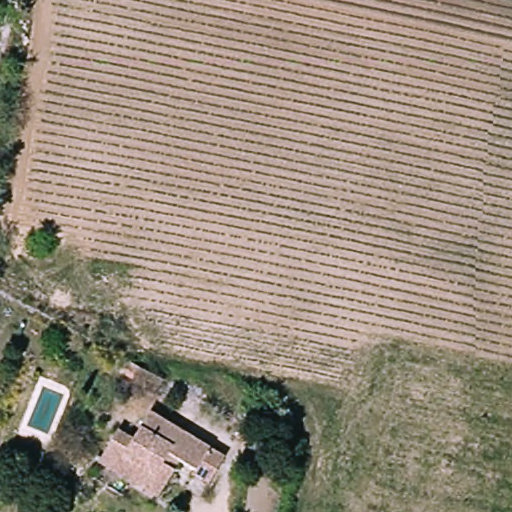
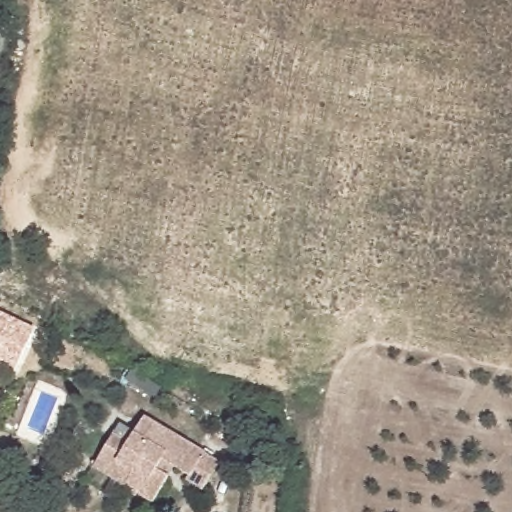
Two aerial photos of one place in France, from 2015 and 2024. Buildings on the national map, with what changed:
new [(15,369),(9,381),(0,376),(0,311),(35,329),(15,369)]
unchanged [(160,501),(127,481),(100,465),(106,455),(118,439),(131,447),(148,421),(223,468),(207,494),(193,485),(196,477),(181,469),(173,480),(160,501)]

